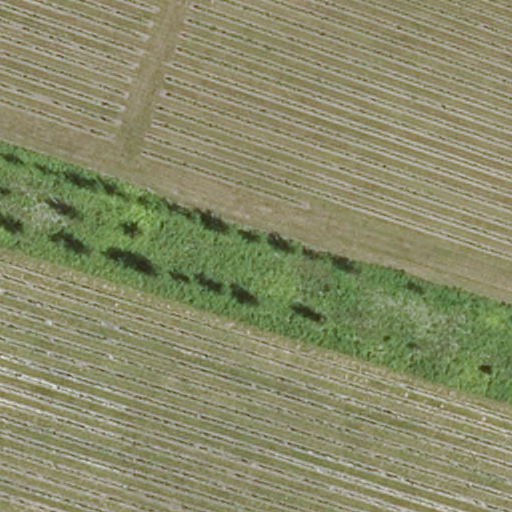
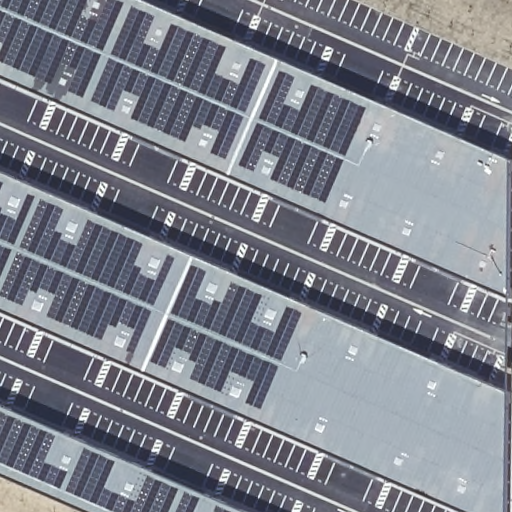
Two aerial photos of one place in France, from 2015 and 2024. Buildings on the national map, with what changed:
new [(146,0),(512,159),(512,301),(0,77),(0,0),(146,0)]
new [(510,393),(510,512),(463,512),(0,311),(0,171),(510,393)]
new [(247,512),(86,512),(0,475),(0,405),(247,512)]

